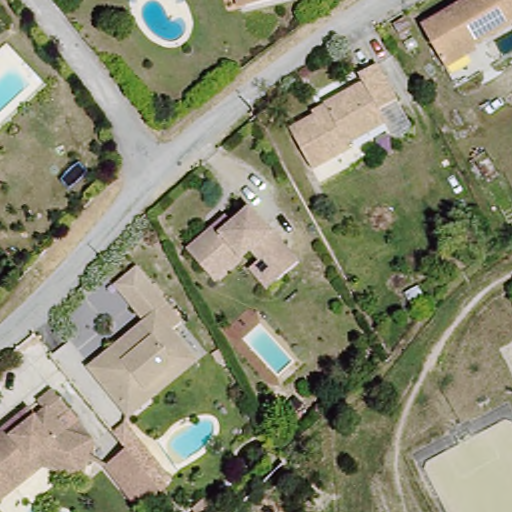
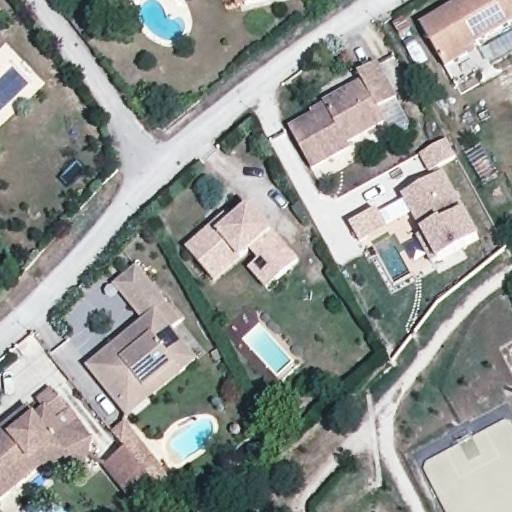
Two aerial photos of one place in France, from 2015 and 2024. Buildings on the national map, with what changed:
unchanged [(250,0),(235,5),(234,0),(250,0)]
unchanged [(512,26),(464,52),(466,57),(442,70),(418,26),(466,0),(512,0),(512,26)]
unchanged [(358,81),(377,71),(398,108),(380,117),(388,129),(349,151),(351,154),(313,175),(293,136),(314,124),(312,117),(325,110),(363,90),(358,81)]
new [(447,144),(456,161),(429,175),(420,159),(447,144)]
new [(441,177),(477,243),(431,267),(417,240),(422,237),(401,198),(441,177)]
unchanged [(258,261),(248,250),(237,259),(212,281),(204,271),(184,249),(212,225),(223,216),(230,223),(246,208),(267,231),(272,232),(298,262),(275,281),(266,289),(248,269),(258,261)]
new [(375,212),(385,230),(358,244),(349,227),(375,212)]
unchanged [(113,350),(148,322),(136,306),(113,283),(135,265),(157,289),(184,323),(174,331),(198,362),(184,373),(177,365),(145,390),(144,388),(119,408),(99,383),(89,369),(113,350)]
unchanged [(157,394),(156,405),(132,424),(119,408),(144,388),(145,390),(177,365),(184,373),(157,394)]
unchanged [(47,467),(16,490),(0,502),(0,441),(27,421),(37,413),(45,421),(55,414),(75,438),(98,445),(89,474),(87,482),(47,467)]
unchanged [(127,449),(157,489),(133,506),(103,466),(127,449)]

